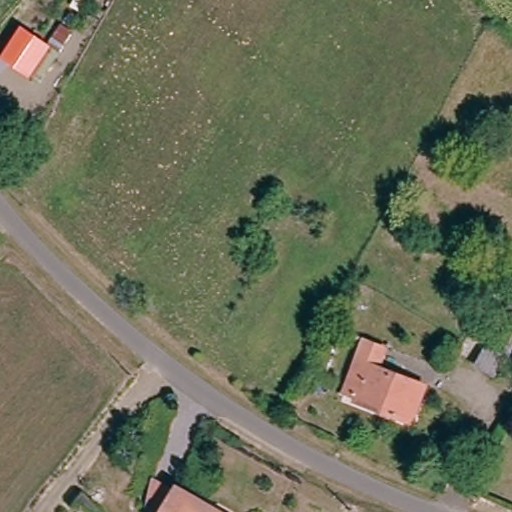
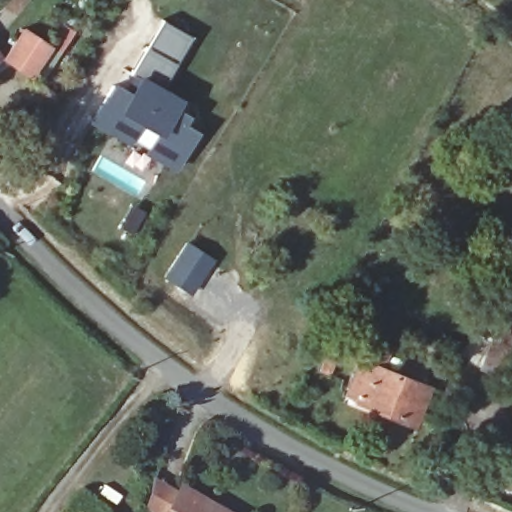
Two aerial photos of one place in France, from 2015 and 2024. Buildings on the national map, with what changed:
new [(191,36),(162,87),(182,99),(176,108),(189,115),(185,125),(199,131),(176,171),(88,124),(110,83),(124,90),(162,19),(191,36)]
unchanged [(41,84),(2,60),(22,26),(48,41),(62,21),(76,29),(41,84)]
unchanged [(512,301),(512,341),(493,377),(476,368),(511,301),(512,301)]
unchanged [(358,354),(430,391),(411,427),(340,390),(358,354)]
unchanged [(155,509),(161,481),(184,494),(185,491),(222,512),(160,512),(155,509)]

